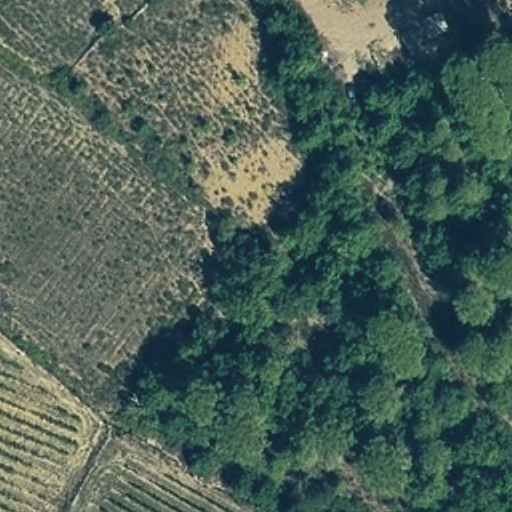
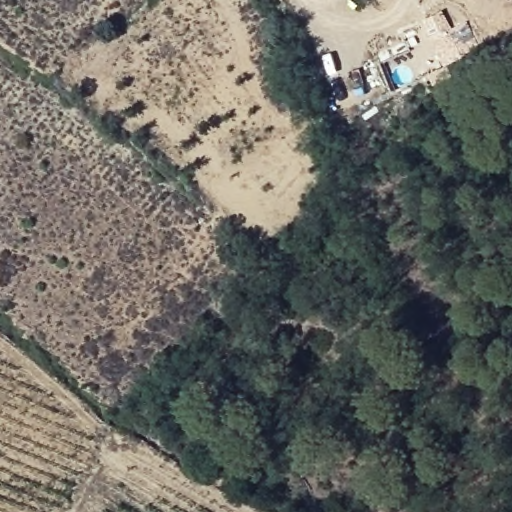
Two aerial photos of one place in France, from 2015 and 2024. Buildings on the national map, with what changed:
unchanged [(445,10),(451,29),(428,40),(422,19),(445,10)]

